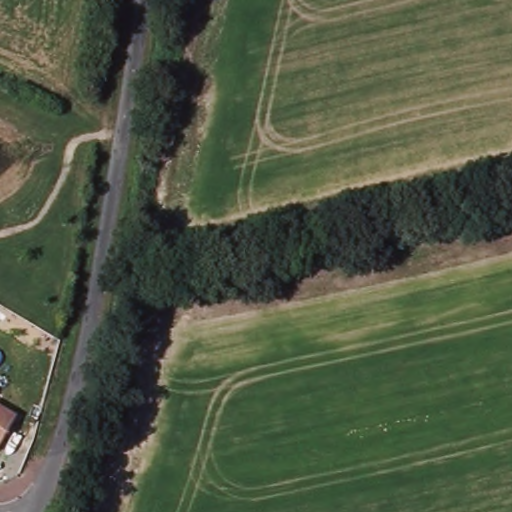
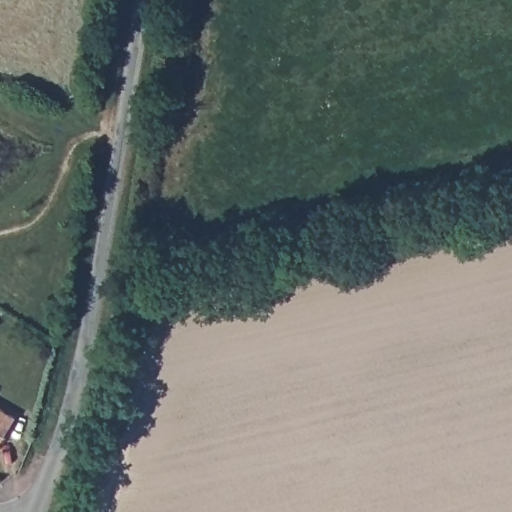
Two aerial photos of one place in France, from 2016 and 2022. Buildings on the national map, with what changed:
unchanged [(0,449),(0,429),(9,434),(0,449)]

